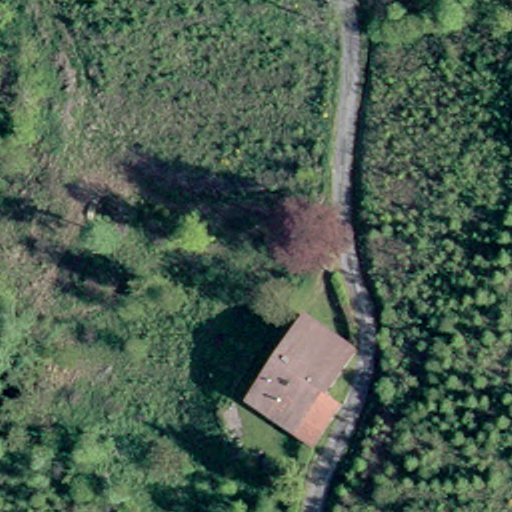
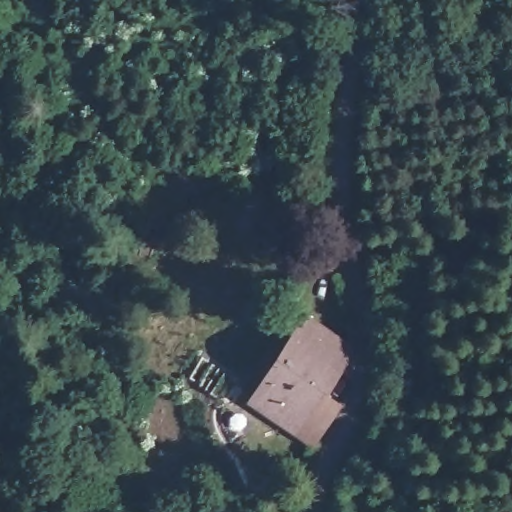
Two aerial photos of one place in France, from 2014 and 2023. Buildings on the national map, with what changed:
unchanged [(324,385),(334,392),(313,433),(291,422),(248,397),(297,313),(346,340),(324,385)]

